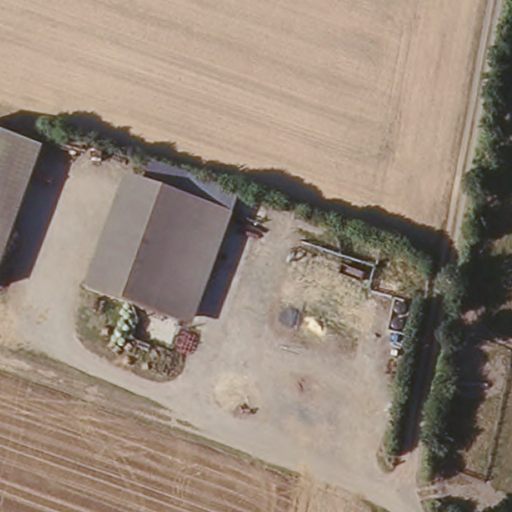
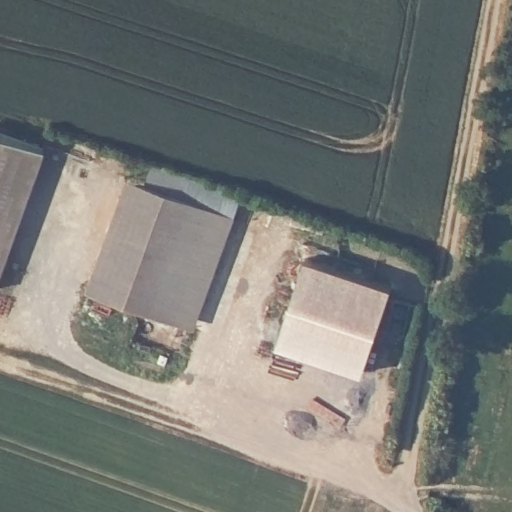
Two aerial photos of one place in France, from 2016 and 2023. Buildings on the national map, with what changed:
unchanged [(0,244),(0,132),(35,145),(0,244)]
unchanged [(148,315),(110,301),(90,293),(130,181),(149,187),(150,187),(177,197),(188,201),(148,315)]
unchanged [(226,215),(185,327),(148,315),(188,201),(226,215)]
new [(397,286),(369,378),(280,350),(309,257),(397,286)]

